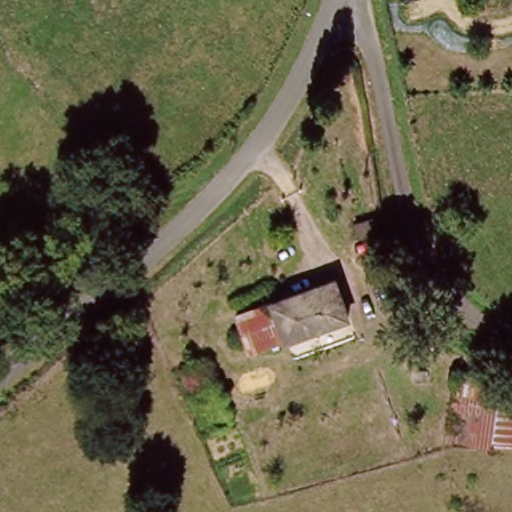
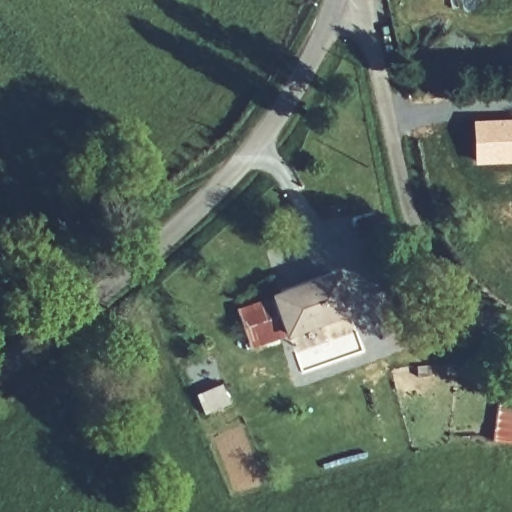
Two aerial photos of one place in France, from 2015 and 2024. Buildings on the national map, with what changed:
new [(512,164),(474,166),(472,121),(512,119),(512,164)]
unchanged [(365,215),(387,211),(390,227),(367,229),(365,215)]
unchanged [(341,275),(355,311),(292,336),(279,298),(341,275)]
unchanged [(229,316),(279,298),(292,336),(242,352),(229,316)]
unchanged [(227,406),(205,416),(182,365),(209,356),(227,406)]
unchanged [(445,439),(457,367),(497,372),(512,374),(512,447),(487,445),(445,439)]

